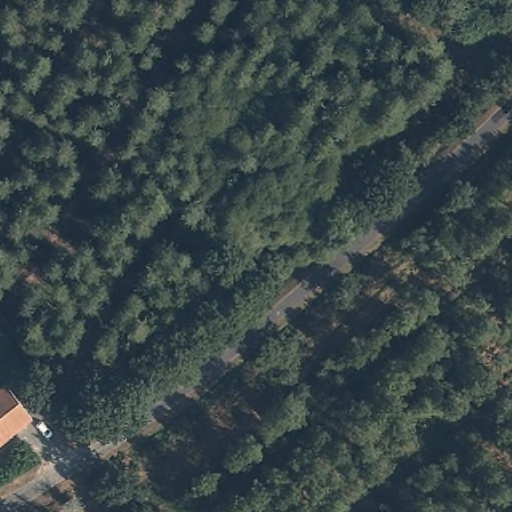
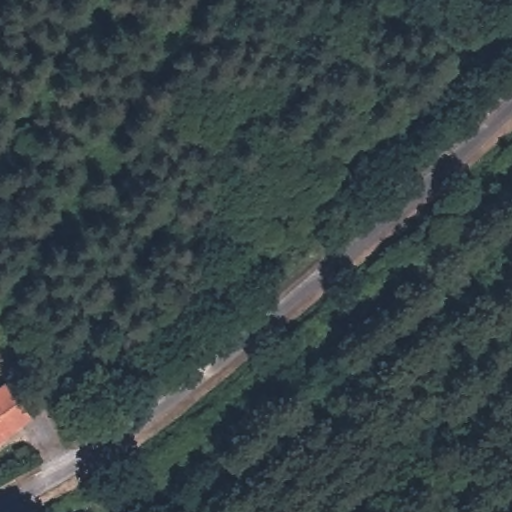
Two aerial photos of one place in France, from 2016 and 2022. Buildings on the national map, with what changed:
unchanged [(2,391),(5,389),(10,386),(48,413),(43,416),(27,427),(0,446),(0,392),(2,391)]

